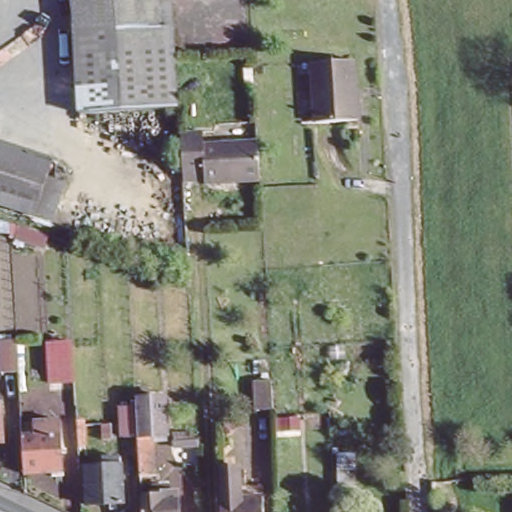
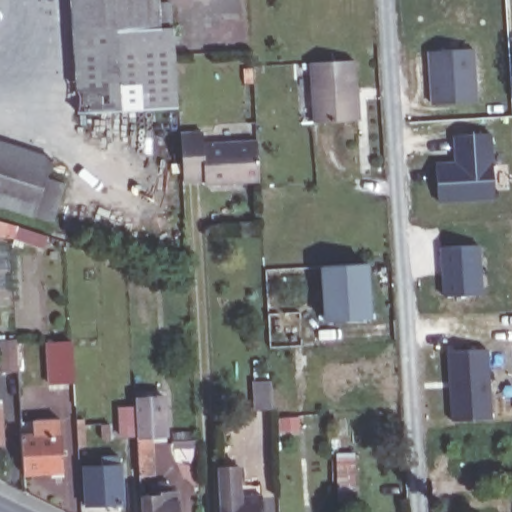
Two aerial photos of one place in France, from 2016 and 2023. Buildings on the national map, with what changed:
unchanged [(72,0),(155,0),(156,29),(173,29),(174,55),(178,111),(76,115),(72,0)]
new [(429,52),(474,49),(477,102),(431,105),(429,52)]
unchanged [(359,119),(319,122),(314,61),(355,59),(359,119)]
unchanged [(183,132),(198,132),(201,142),(259,140),(261,178),(201,181),(199,171),(186,171),(183,132)]
new [(436,163),(457,163),(454,137),(491,135),(494,200),(437,203),(436,163)]
unchanged [(24,213),(0,204),(0,142),(45,157),(38,175),(60,183),(46,221),(24,213)]
new [(439,248),(478,246),(481,294),(443,297),(439,248)]
new [(374,267),(376,322),(331,325),(329,270),(374,267)]
unchanged [(45,383),(44,391),(20,391),(18,373),(2,374),(0,343),(17,342),(70,340),(72,382),(45,383)]
new [(487,351),(492,419),(451,422),(447,353),(487,351)]
unchanged [(168,424),(155,426),(156,462),(140,464),(138,422),(121,423),(120,412),(120,398),(136,397),(136,389),(166,387),(168,424)]
unchanged [(6,444),(0,444),(0,408),(5,408),(6,444)]
unchanged [(276,446),(259,446),(258,419),(274,418),(276,446)]
unchanged [(174,425),(188,424),(190,432),(199,432),(200,439),(175,440),(174,425)]
unchanged [(44,433),(44,425),(53,425),(54,432),(58,432),(60,468),(23,469),(21,433),(38,432),(44,433)]
unchanged [(356,480),(336,480),(336,438),(356,438),(356,480)]
unchanged [(84,472),(102,471),(101,463),(122,461),(123,470),(119,470),(122,506),(86,508),(84,472)]
unchanged [(263,498),(263,512),(220,512),(218,470),(241,468),(242,499),(263,498)]
unchanged [(161,494),(161,489),(179,488),(180,512),(143,512),(141,495),(161,494)]

